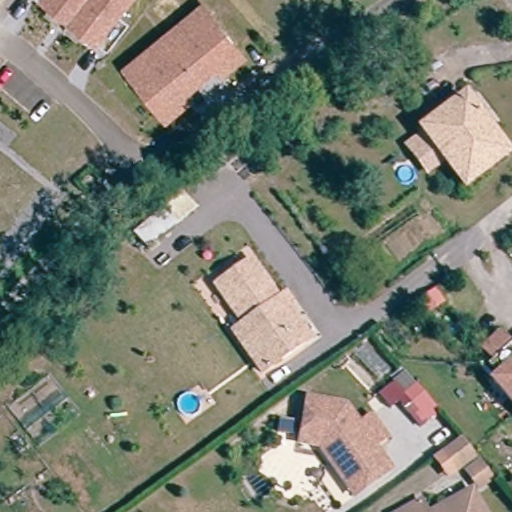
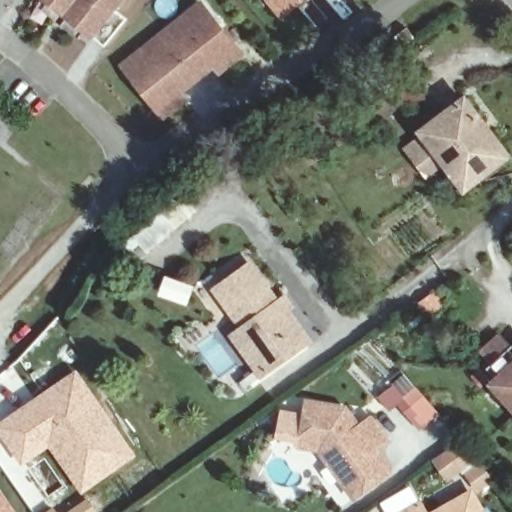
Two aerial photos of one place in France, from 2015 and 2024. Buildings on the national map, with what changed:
unchanged [(63,11),(56,19),(44,9),(51,1),(50,0),(122,0),(115,8),(127,19),(105,46),(81,26),(74,35),(62,25),(69,16),(63,11)]
unchanged [(158,112),(152,104),(118,58),(197,0),(200,0),(233,44),(238,52),(216,69),(210,61),(175,87),(180,95),(158,112)]
new [(265,0),(306,0),(283,18),(265,0)]
unchanged [(431,129),(474,96),(489,114),(483,119),(512,154),(475,183),(457,161),(441,175),(417,146),(434,132),(431,129)]
new [(139,245),(132,252),(125,245),(167,209),(171,214),(188,199),(197,210),(147,254),(139,245)]
unchanged [(235,334),(245,326),(217,288),(251,262),(280,300),(282,298),(302,326),(298,329),(308,341),(275,366),(265,374),(235,334)]
unchanged [(476,370),(487,360),(476,348),(494,332),(505,344),(501,348),(512,359),(512,409),(476,370)]
new [(136,455),(79,493),(47,447),(20,466),(0,438),(0,420),(75,368),(136,455)]
unchanged [(420,417),(406,401),(417,391),(431,407),(439,416),(428,426),(420,417)]
unchanged [(328,466),(318,451),(298,447),(300,440),(306,404),(344,411),(388,474),(363,492),(352,500),(328,466)]
unchanged [(439,448),(453,433),(491,481),(473,492),(484,512),(426,512),(465,485),(439,448)]
new [(0,512),(0,489),(15,512),(0,512)]
unchanged [(426,512),(394,512),(416,496),(426,512)]
new [(96,512),(65,512),(86,498),(96,512)]
new [(57,512),(44,512),(52,506),(57,512)]

